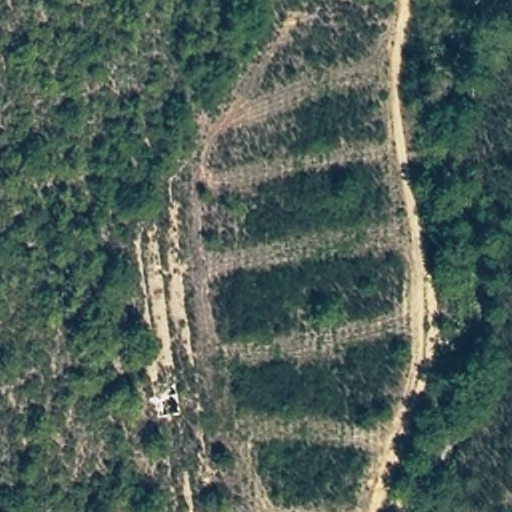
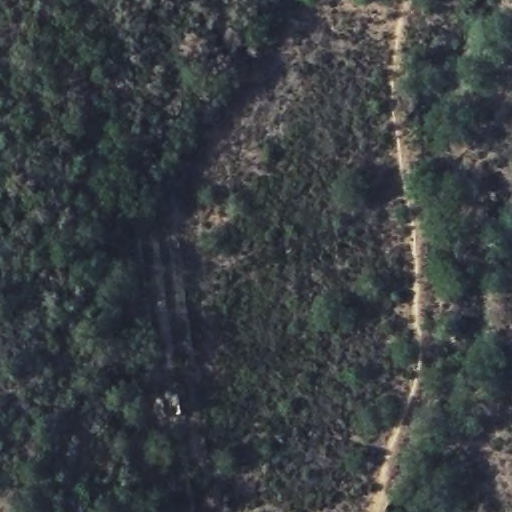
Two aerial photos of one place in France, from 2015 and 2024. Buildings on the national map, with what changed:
unchanged [(179,417),(157,417),(154,398),(175,396),(179,417)]

